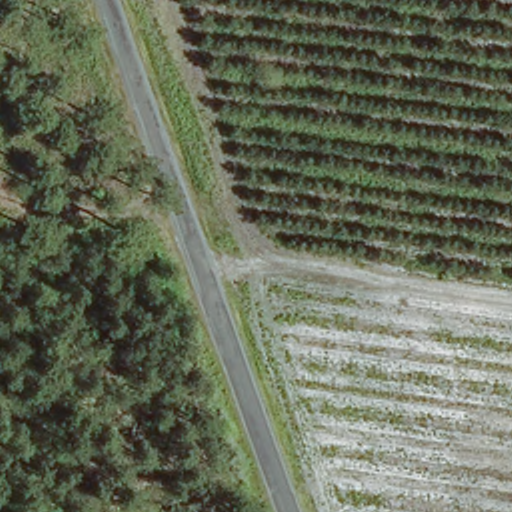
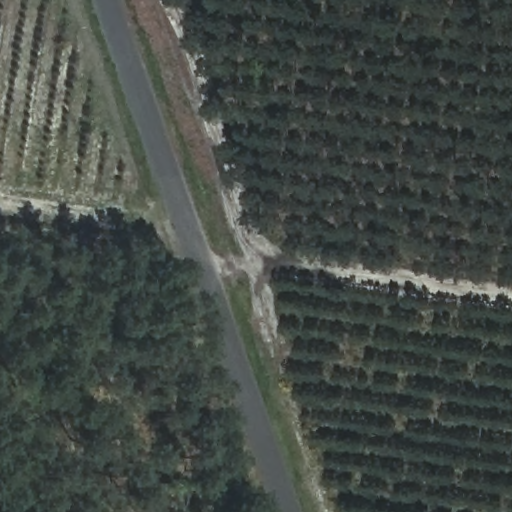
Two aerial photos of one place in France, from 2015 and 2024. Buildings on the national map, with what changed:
[]

